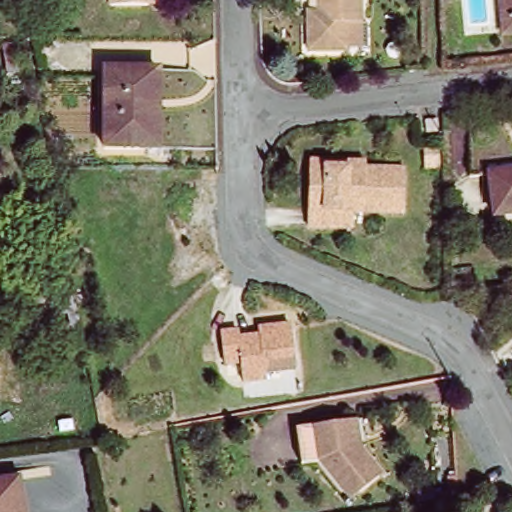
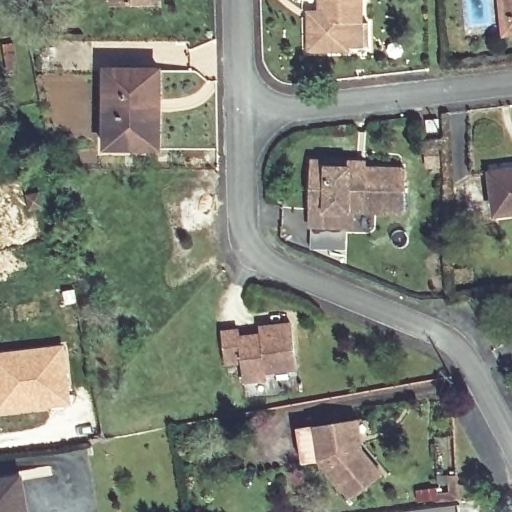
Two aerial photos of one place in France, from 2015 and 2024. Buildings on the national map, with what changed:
unchanged [(121,0),(164,0),(164,4),(160,4),(121,5),(121,0)]
unchanged [(319,50),(319,31),(319,16),(330,15),(330,0),(372,0),(372,22),(372,45),(359,45),(358,49),(319,50)]
unchanged [(506,0),(512,0),(512,33),(509,34),(506,0)]
unchanged [(19,70),(9,72),(4,45),(15,43),(19,70)]
unchanged [(169,143),(161,143),(116,143),(116,63),(157,64),(170,64),(169,143)]
unchanged [(439,118),(440,130),(428,131),(427,119),(439,118)]
unchanged [(184,148),(172,148),(172,143),(184,143),(184,148)]
unchanged [(426,148),(439,148),(439,160),(440,166),(427,166),(427,161),(426,148)]
unchanged [(410,211),(360,210),(359,226),(315,225),(316,208),(317,159),(371,161),(371,167),(411,168),(410,211)]
unchanged [(500,171),(512,170),(512,213),(505,214),(500,171)]
unchanged [(40,193),(42,206),(31,208),(28,195),(40,193)]
unchanged [(307,367),(277,371),(278,377),(255,380),(252,360),(236,362),(233,331),(249,329),(250,336),(271,333),(270,326),(283,325),(302,323),(307,367)]
new [(63,348),(71,403),(0,410),(0,355),(63,348)]
unchanged [(357,498),(325,459),(308,462),(303,428),(320,425),(358,419),(363,418),(368,450),(387,473),(357,498)]
unchanged [(459,499),(441,500),(440,492),(451,492),(450,475),(458,474),(459,499)]
unchanged [(32,512),(0,512),(0,480),(26,476),(32,512)]

